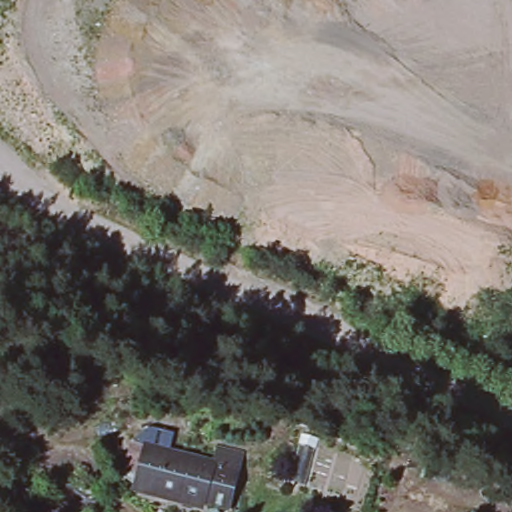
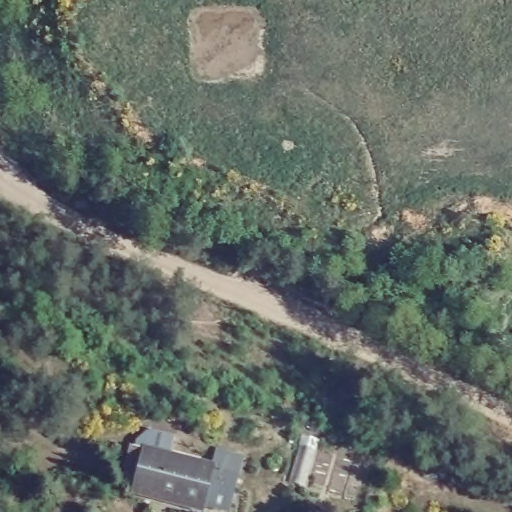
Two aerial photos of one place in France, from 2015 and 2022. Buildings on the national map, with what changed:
unchanged [(225,512),(204,507),(202,512),(138,496),(150,451),(139,448),(143,432),(177,440),(173,457),(215,467),(219,453),(243,459),(242,462),(230,512),(225,512)]

